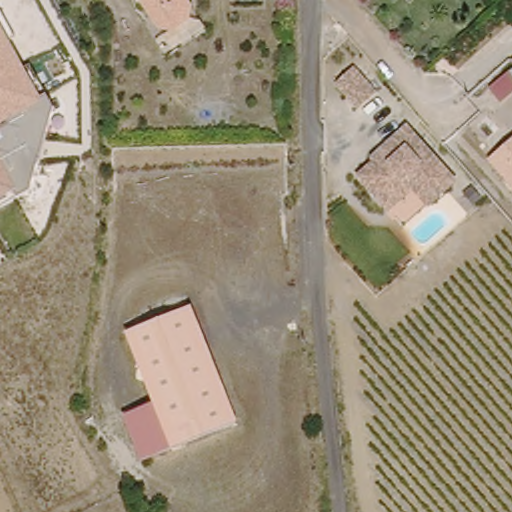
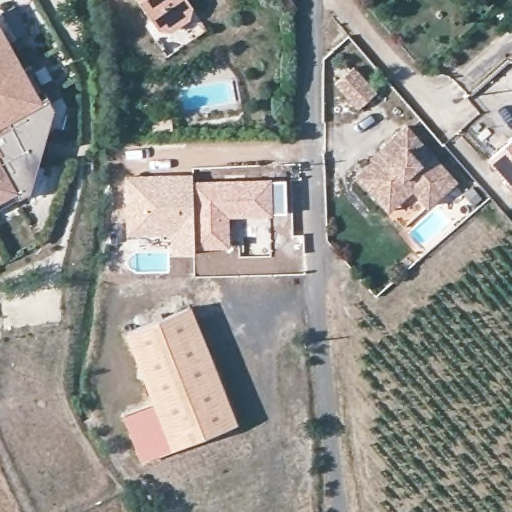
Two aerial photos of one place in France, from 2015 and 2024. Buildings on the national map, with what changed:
unchanged [(193,20),(188,27),(177,32),(167,32),(161,30),(143,0),(191,0),(195,10),(193,20)]
unchanged [(44,98),(49,95),(52,102),(35,200),(0,219),(0,16),(44,98)]
unchanged [(512,93),(500,101),(485,82),(512,57),(512,93)]
unchanged [(340,81),(360,67),(381,91),(361,107),(340,81)]
new [(71,137),(50,131),(56,112),(76,117),(71,137)]
unchanged [(463,179),(405,229),(355,173),(411,125),(463,179)]
unchanged [(512,137),(512,186),(487,159),(512,137)]
new [(193,173),(193,179),(196,227),(195,251),(195,254),(170,254),(169,235),(127,237),(125,175),(193,173)]
new [(228,177),(286,179),(288,212),(270,216),(243,219),(231,219),(230,247),(195,251),(196,227),(193,179),(228,177)]
unchanged [(125,335),(194,304),(247,420),(174,450),(152,400),(125,335)]
unchanged [(147,461),(123,412),(152,400),(174,450),(147,461)]

